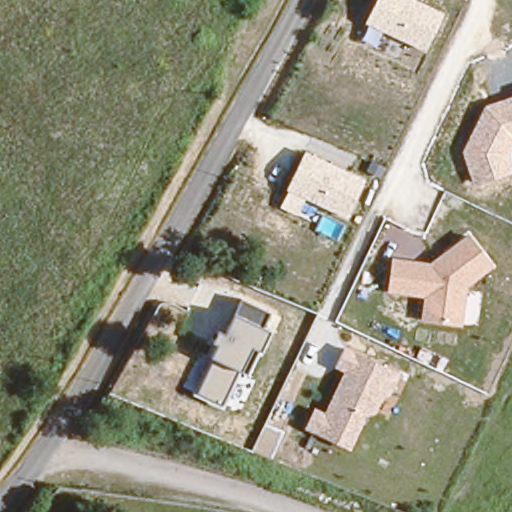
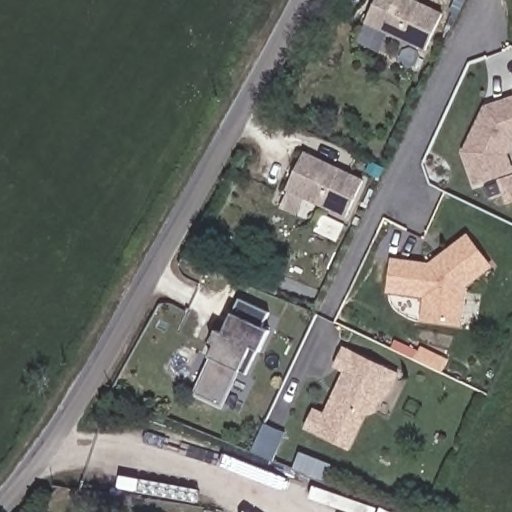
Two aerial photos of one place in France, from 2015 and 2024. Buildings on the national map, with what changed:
unchanged [(425,54),(384,33),(376,47),(361,40),(368,25),(365,23),(376,0),(413,0),(444,15),(425,54)]
unchanged [(509,155),(512,163),(512,171),(473,185),(462,151),(484,106),(512,97),(512,148),(509,155)]
unchanged [(350,220),(306,200),(298,215),(280,207),(288,190),(285,190),(303,151),(367,180),(350,220)]
unchanged [(393,257),(430,262),(469,234),(494,266),(468,286),(462,327),(419,323),(422,298),(385,293),(393,257)]
unchanged [(262,328),(269,331),(246,375),(239,371),(221,409),(194,396),(213,359),(210,356),(217,343),(212,340),(219,327),(226,331),(241,298),(269,312),(262,328)]
unchanged [(391,397),(382,397),(374,415),(366,418),(350,453),(302,431),(316,406),(326,412),(343,375),(332,371),(344,346),(402,373),(391,397)]

